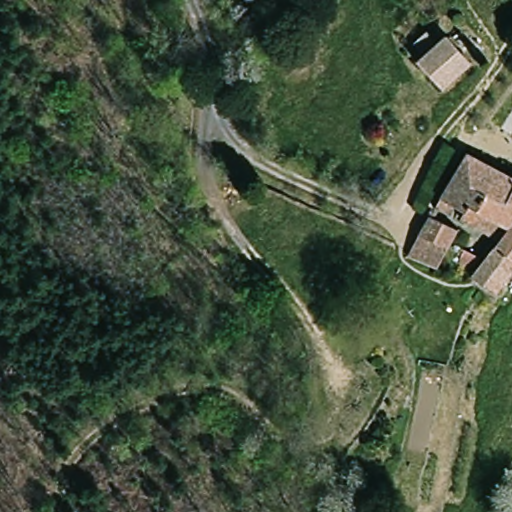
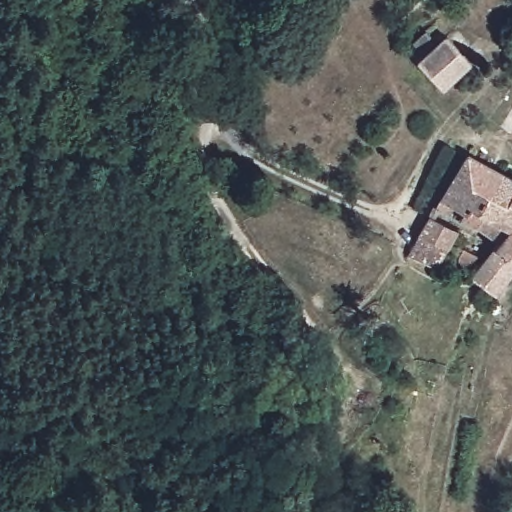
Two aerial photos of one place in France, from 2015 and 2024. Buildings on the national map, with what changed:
unchanged [(479,63),(448,94),(419,64),(448,30),(479,63)]
unchanged [(469,219),(475,210),(463,202),(456,211),(443,204),(486,152),(512,170),(512,277),(499,296),(480,283),(475,280),(505,242),(483,229),(469,219)]
unchanged [(437,210),(461,227),(449,246),(440,257),(415,240),(423,229),(437,210)]

